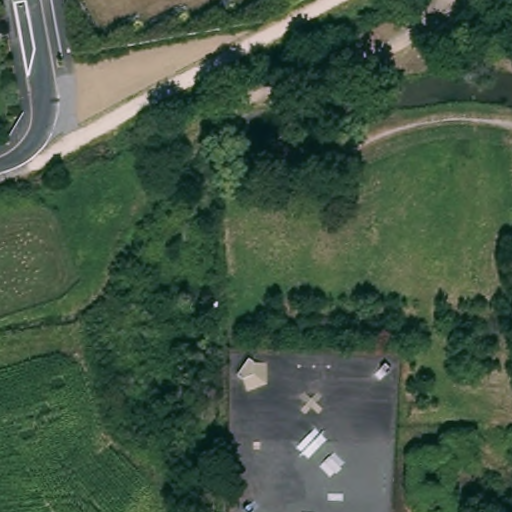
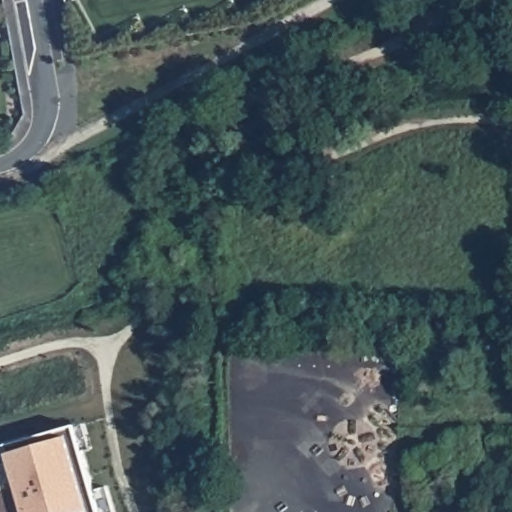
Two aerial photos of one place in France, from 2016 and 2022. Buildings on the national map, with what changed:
new [(13,462),(9,453),(7,446),(77,426),(100,512),(0,512),(0,466),(13,462)]

